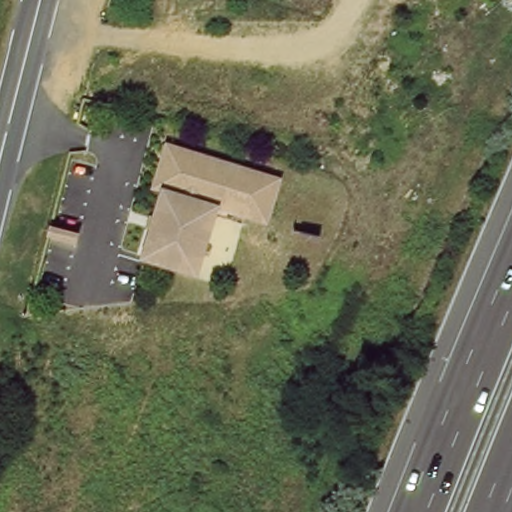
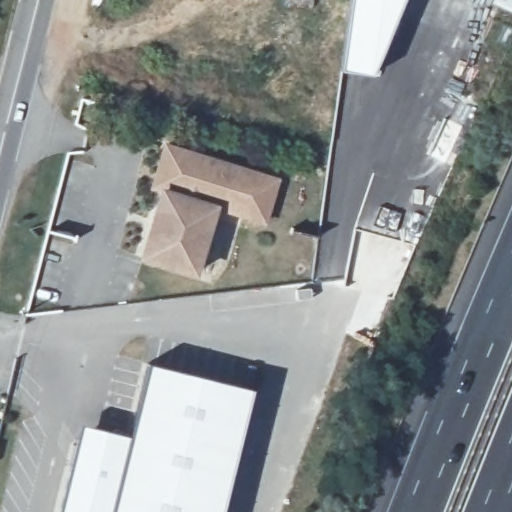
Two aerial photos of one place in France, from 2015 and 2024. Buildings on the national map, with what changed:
new [(349,0),(404,0),(373,75),(340,69),(349,0)]
unchanged [(285,180),(275,211),(272,221),(221,208),(202,273),(151,258),(169,193),(159,190),(171,147),(285,180)]
new [(130,438),(148,365),(251,390),(219,512),(59,512),(81,426),(130,438)]

